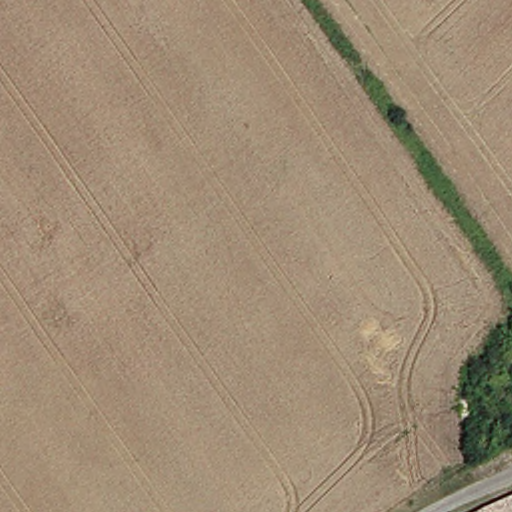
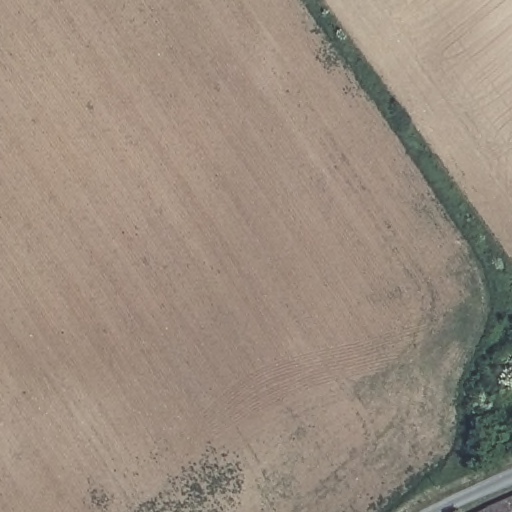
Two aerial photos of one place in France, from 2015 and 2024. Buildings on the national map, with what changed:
unchanged [(497,505),(500,512),(476,512),(497,505)]
unchanged [(511,512),(512,510),(512,512),(511,512)]

